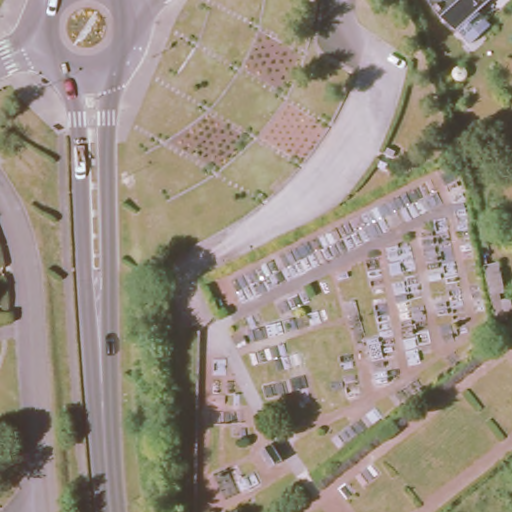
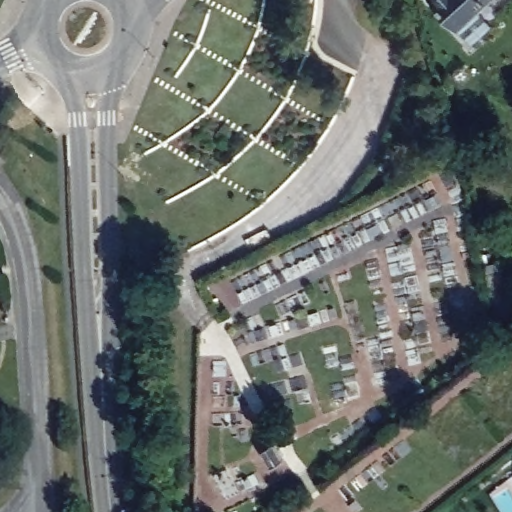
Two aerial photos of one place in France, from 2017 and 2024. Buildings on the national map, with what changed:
unchanged [(428,0),(483,0),(447,26),(428,0)]
unchanged [(495,302),(494,293),(490,274),(504,271),(508,291),(503,293),(505,300),(495,302)]

